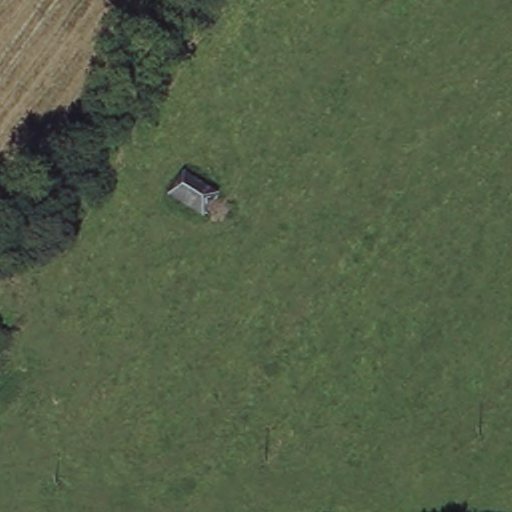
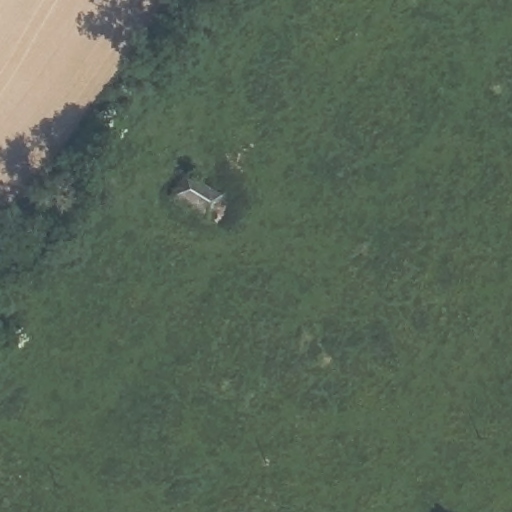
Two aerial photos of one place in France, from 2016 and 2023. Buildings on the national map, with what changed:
unchanged [(216,190),(204,211),(172,193),(186,170),(216,190)]

